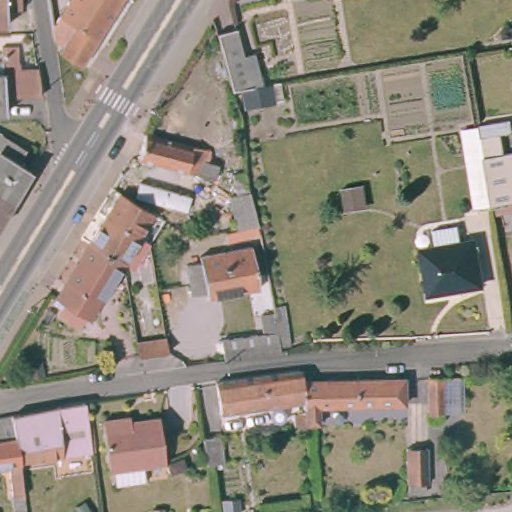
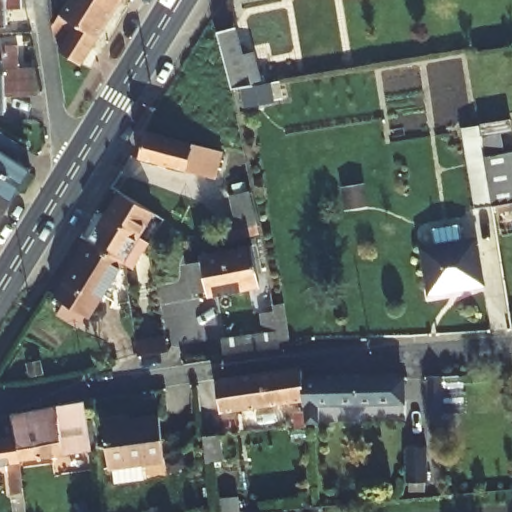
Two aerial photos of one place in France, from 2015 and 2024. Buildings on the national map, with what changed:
unchanged [(8,12),(8,26),(0,26),(0,0),(24,0),(24,11),(8,12)]
unchanged [(119,0),(79,66),(57,52),(60,46),(50,40),(48,29),(66,0),(119,0)]
unchanged [(234,93),(218,34),(239,29),(256,89),(234,93)]
unchanged [(6,100),(6,112),(0,112),(0,63),(6,63),(5,46),(24,46),(25,69),(40,68),(44,98),(6,100)]
unchanged [(488,146),(486,135),(486,134),(507,131),(511,151),(512,151),(512,203),(497,206),(481,208),(471,149),(488,146)]
unchanged [(24,151),(15,163),(28,171),(9,200),(0,195),(0,136),(24,151)]
unchanged [(209,154),(206,164),(216,166),(213,182),(136,163),(143,139),(209,154)]
unchanged [(231,196),(249,191),(258,224),(239,230),(231,196)]
unchanged [(103,218),(117,194),(153,216),(138,240),(103,218)]
unchanged [(9,200),(0,216),(0,195),(9,200)]
unchanged [(103,218),(138,240),(148,246),(132,272),(120,265),(86,244),(103,218)]
unchanged [(428,297),(420,252),(434,250),(432,237),(459,233),(462,244),(474,242),(482,288),(428,297)]
unchanged [(120,265),(87,320),(83,317),(75,329),(55,316),(63,304),(53,298),(86,244),(120,265)]
unchanged [(206,298),(204,291),(191,293),(186,264),(200,261),(199,257),(250,247),(258,288),(206,298)]
unchanged [(219,342),(261,335),(257,314),(273,312),(278,353),(222,360),(219,342)]
unchanged [(163,337),(166,352),(137,357),(135,341),(163,337)]
unchanged [(300,363),(301,374),(304,402),(294,404),(293,395),(220,404),(216,374),(300,363)]
unchanged [(291,410),(304,409),(304,402),(301,374),(403,370),(404,398),(318,400),(320,423),(306,424),(306,423),(293,424),(291,410)]
unchanged [(426,379),(458,378),(459,414),(428,416),(426,379)]
unchanged [(59,459),(53,410),(86,404),(91,455),(59,459)]
unchanged [(113,477),(111,462),(107,463),(101,410),(123,407),(123,414),(161,409),(165,457),(143,459),(144,474),(113,477)]
unchanged [(9,492),(6,465),(0,466),(0,419),(11,417),(35,413),(53,410),(59,459),(18,464),(20,490),(9,492)]
unchanged [(223,437),(226,464),(208,466),(203,440),(223,437)]
unchanged [(399,451),(419,449),(423,484),(403,485),(399,451)]

